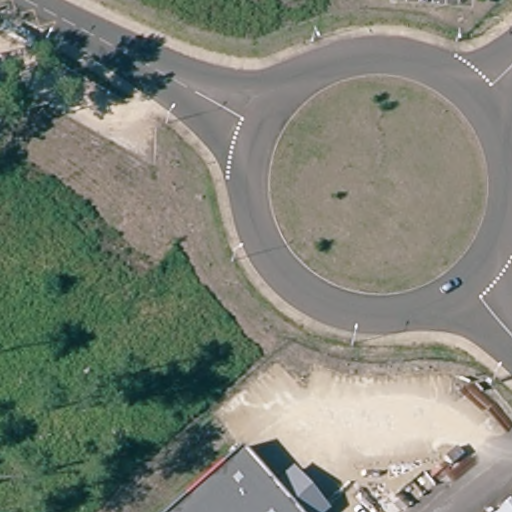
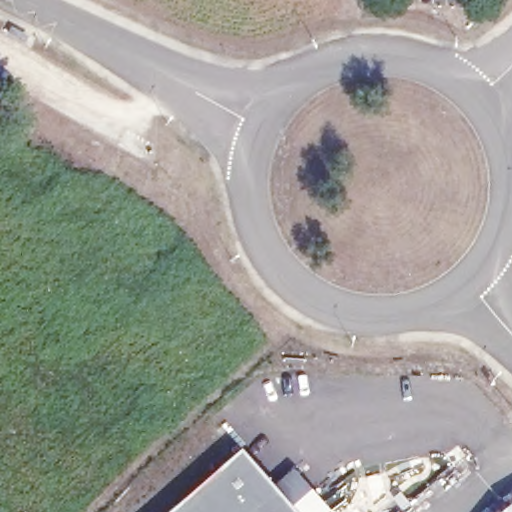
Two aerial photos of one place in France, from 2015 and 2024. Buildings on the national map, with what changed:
unchanged [(242,449),(273,483),(293,469),(328,510),(326,512),(169,512),(242,449)]
unchanged [(512,512),(500,512),(512,502),(512,512)]

